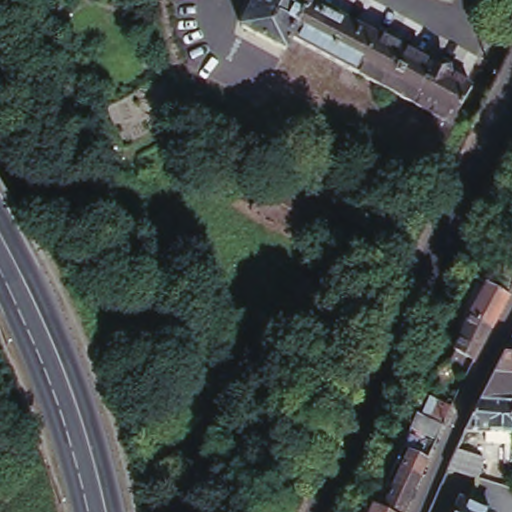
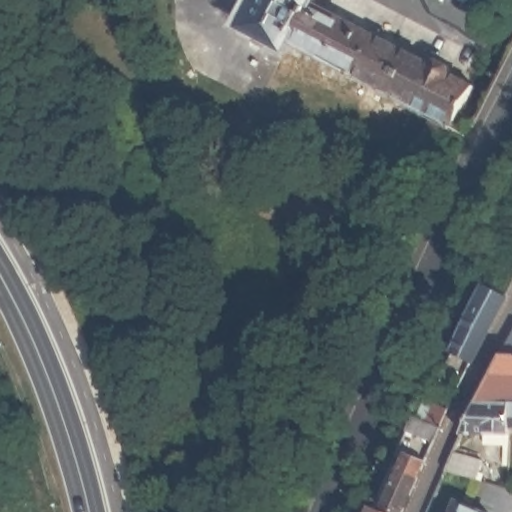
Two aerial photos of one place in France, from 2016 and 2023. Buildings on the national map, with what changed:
unchanged [(461,124),(441,161),(416,147),(434,115),(290,38),(285,50),(240,26),(254,0),(311,0),(310,0),(432,64),(438,60),(449,65),(450,72),(475,85),(455,121),(461,124)]
unchanged [(324,241),(257,208),(271,180),(337,214),(324,241)]
unchanged [(309,316),(291,307),(305,278),(324,288),(309,316)]
unchanged [(491,279),(512,290),(512,293),(478,357),(466,350),(459,346),(474,311),(491,279)]
unchanged [(511,340),(512,338),(512,354),(503,353),(510,340),(511,340)]
unchanged [(512,354),(512,402),(478,401),(503,353),(512,354)]
unchanged [(452,405),(435,444),(404,431),(415,412),(420,413),(426,398),(452,405)]
unchanged [(512,428),(510,427),(510,465),(483,457),(485,442),(485,433),(478,433),(463,433),(478,401),(512,402),(512,428)]
unchanged [(456,451),(483,457),(476,482),(446,471),(456,451)]
unchanged [(412,453),(431,461),(409,512),(402,512),(388,506),(412,453)]
unchanged [(512,484),(512,493),(508,491),(512,484)]
unchanged [(463,502),(487,512),(459,512),(463,502)]
unchanged [(376,505),(390,512),(374,512),(376,505)]

